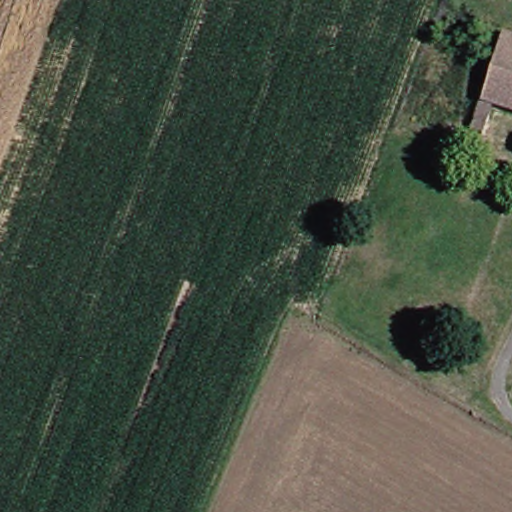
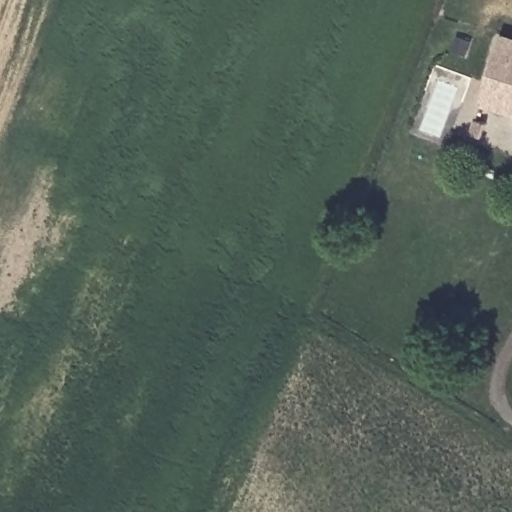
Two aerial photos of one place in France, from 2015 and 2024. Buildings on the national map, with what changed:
unchanged [(492,50),(503,20),(512,23),(512,57),(492,50)]
unchanged [(488,109),(478,136),(461,131),(492,50),(512,57),(512,117),(488,109)]

